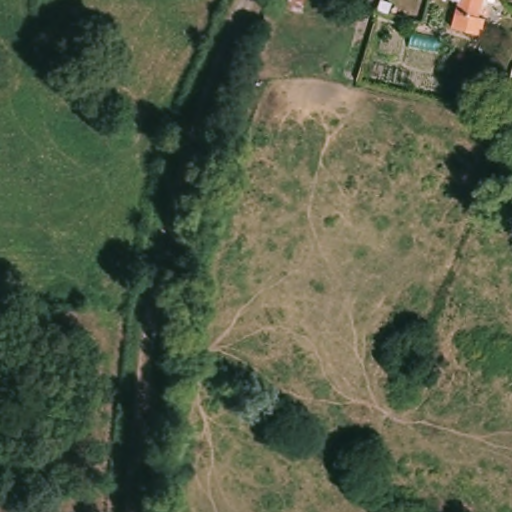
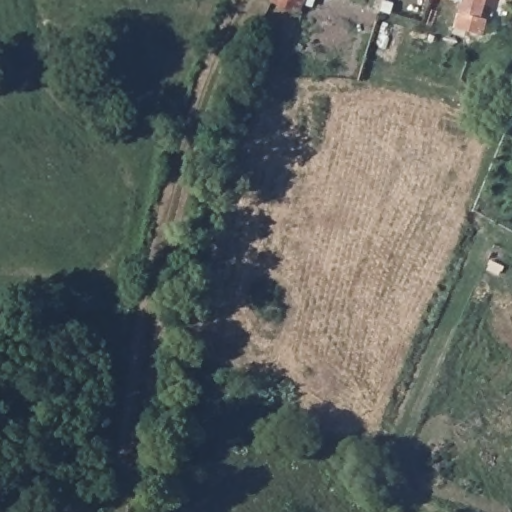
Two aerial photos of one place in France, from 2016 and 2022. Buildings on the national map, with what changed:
unchanged [(300,11),(292,9),(269,1),(269,0),(302,0),(300,11)]
unchanged [(479,17),(484,19),(479,37),(450,30),(457,1),(452,0),(484,0),(479,17)]

